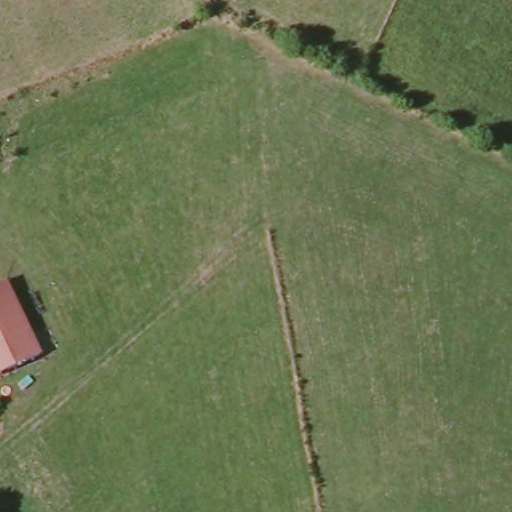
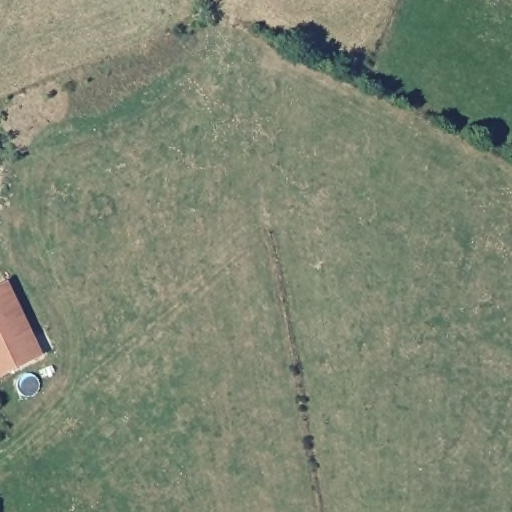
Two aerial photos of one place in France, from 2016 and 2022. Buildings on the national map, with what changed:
unchanged [(45,353),(0,375),(0,282),(10,278),(45,353)]

